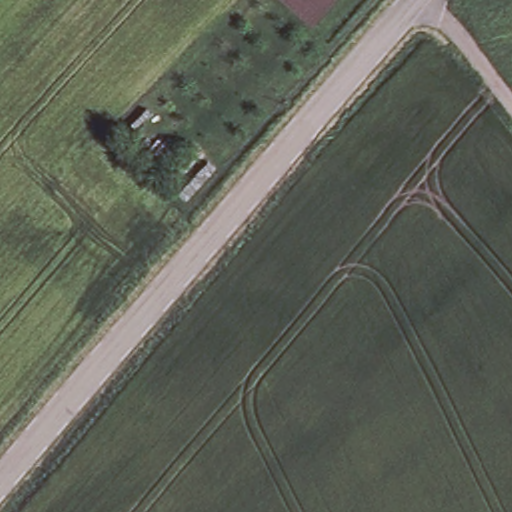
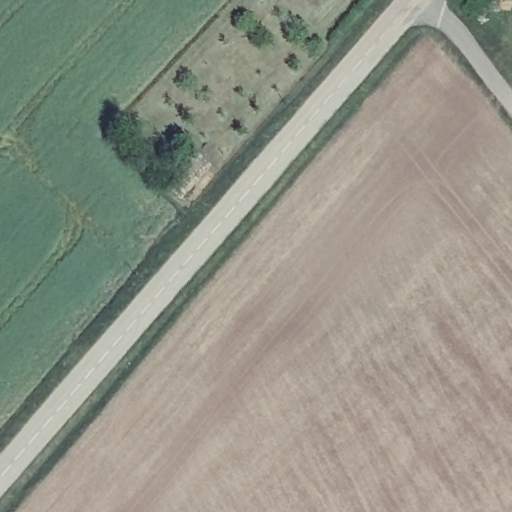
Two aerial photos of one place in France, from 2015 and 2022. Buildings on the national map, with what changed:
unchanged [(169,180),(199,149),(215,164),(185,196),(169,180)]

